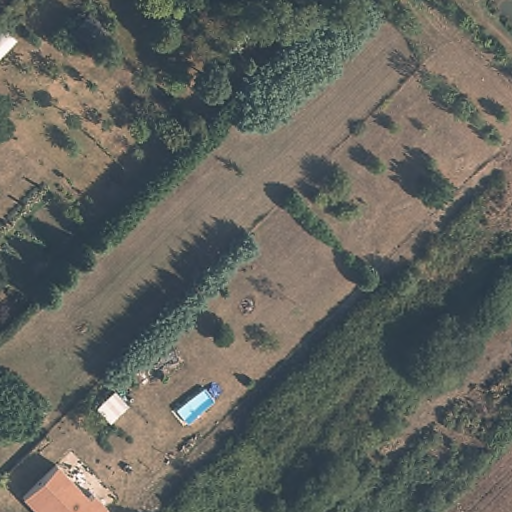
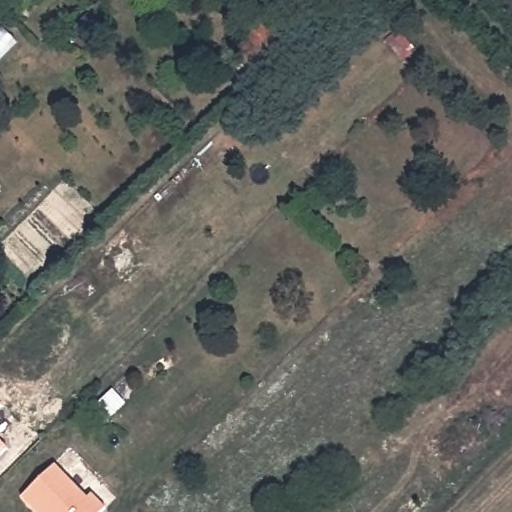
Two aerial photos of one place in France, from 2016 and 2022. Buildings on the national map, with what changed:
unchanged [(92,494),(110,510),(108,512),(34,512),(21,499),(55,466),(88,498),(92,494)]

